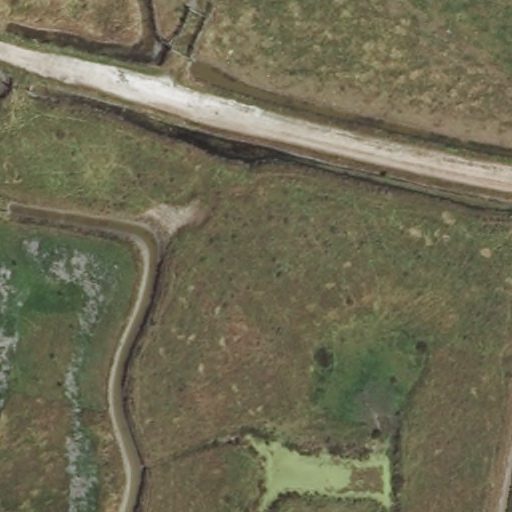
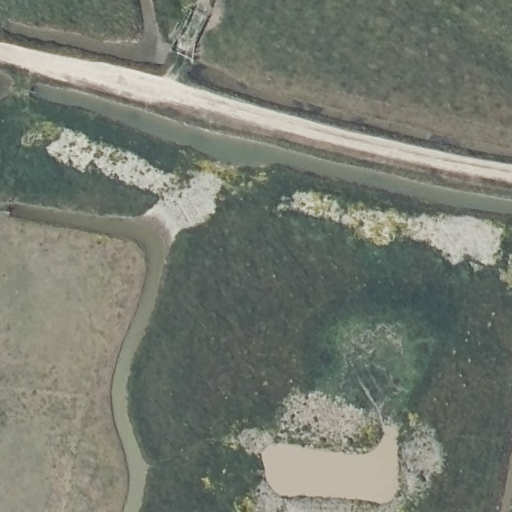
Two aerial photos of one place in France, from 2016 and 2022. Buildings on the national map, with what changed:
[]

